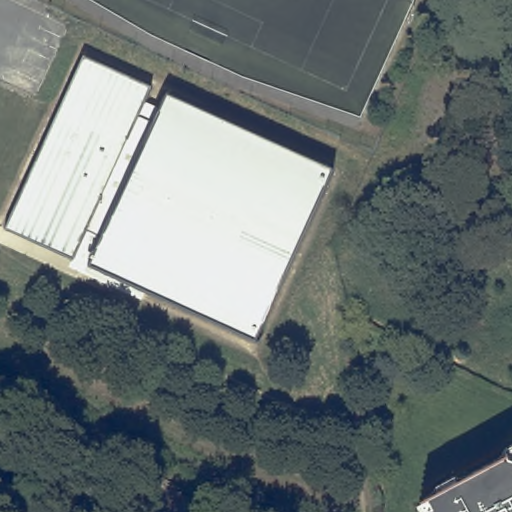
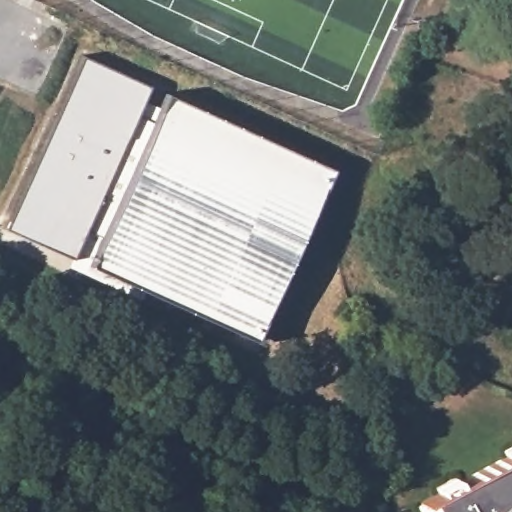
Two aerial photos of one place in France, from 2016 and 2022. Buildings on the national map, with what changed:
unchanged [(4,228),(29,172),(55,115),(82,56),(151,87),(144,101),(159,108),(165,93),(333,169),(310,221),(284,277),(255,342),(87,266),(71,259),(4,228)]
unchanged [(506,461),(508,464),(512,466),(512,512),(430,512),(426,504),(506,461)]

